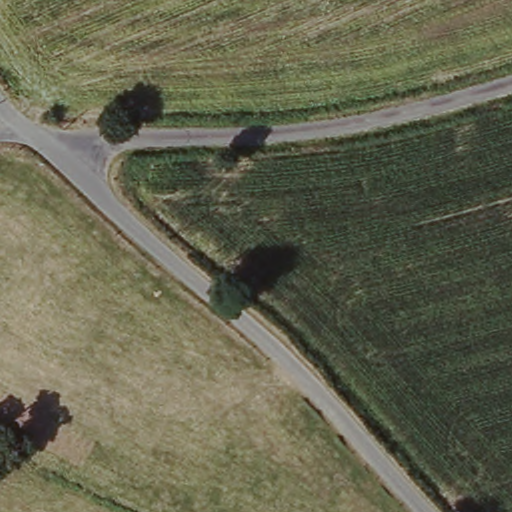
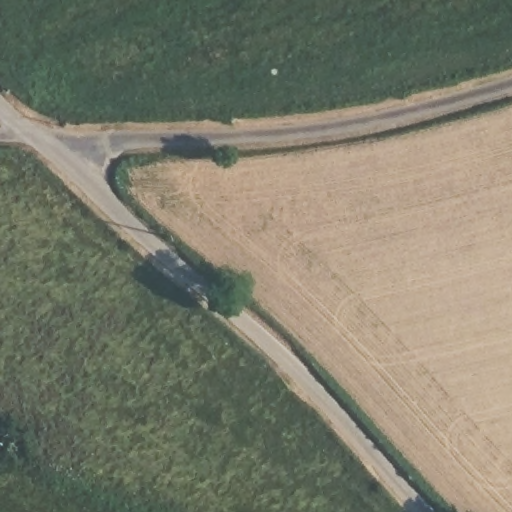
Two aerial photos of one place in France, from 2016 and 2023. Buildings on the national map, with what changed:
[]

